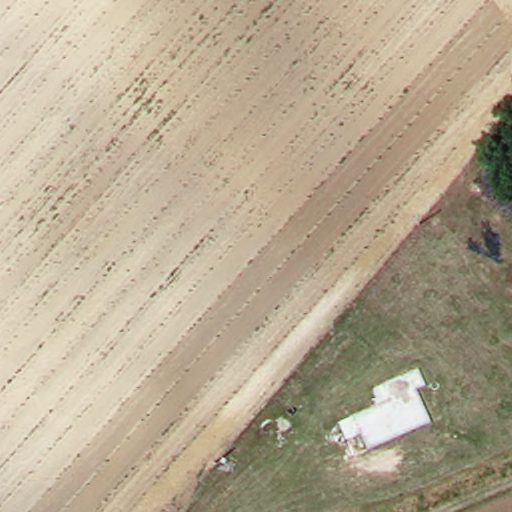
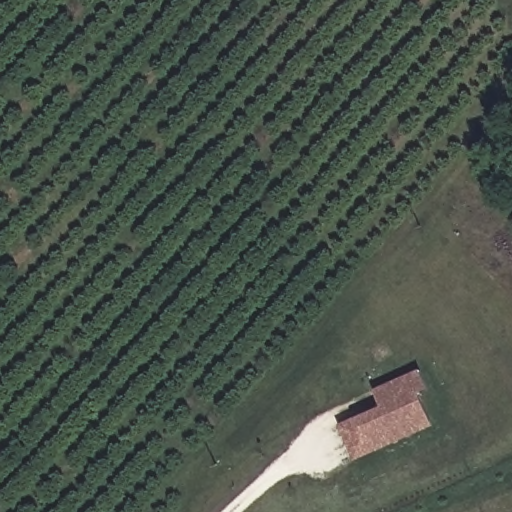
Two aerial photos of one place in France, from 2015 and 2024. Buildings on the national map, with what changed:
new [(419,370),(427,389),(417,395),(432,427),(354,462),(337,426),(380,407),(372,390),(419,370)]

